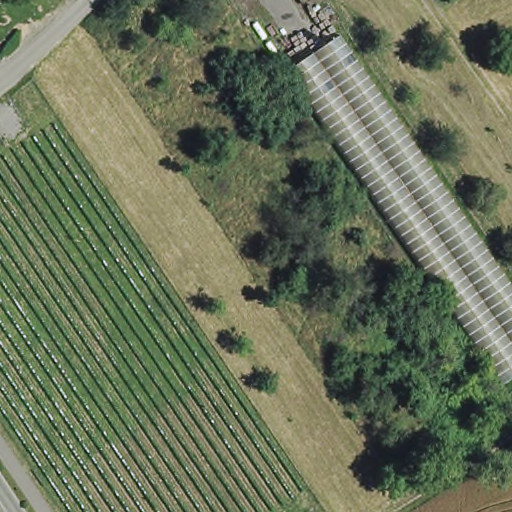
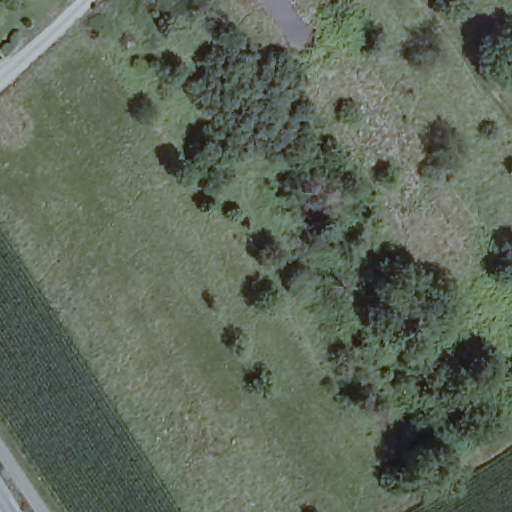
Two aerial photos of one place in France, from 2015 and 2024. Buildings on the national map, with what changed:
demolished [(334,36),(512,290),(512,380),(506,384),(285,68),(334,36)]

